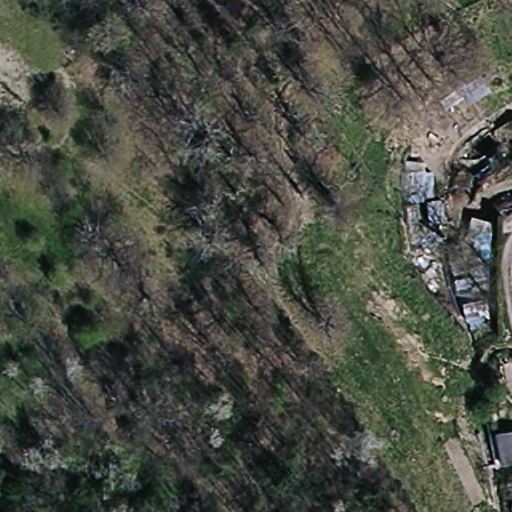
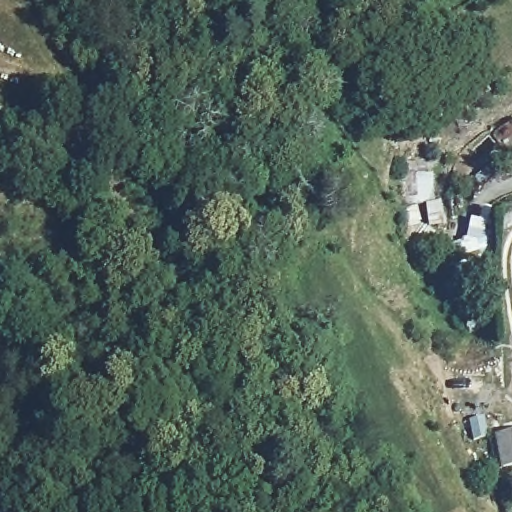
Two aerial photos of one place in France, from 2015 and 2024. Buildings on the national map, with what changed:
unchanged [(492,223),(490,323),(470,332),(450,252),(461,245),(470,234),(471,219),(492,223)]
unchanged [(500,433),(512,430),(512,462),(505,463),(500,433)]

